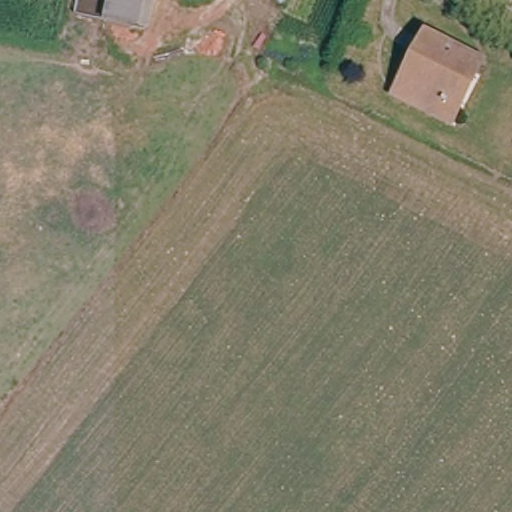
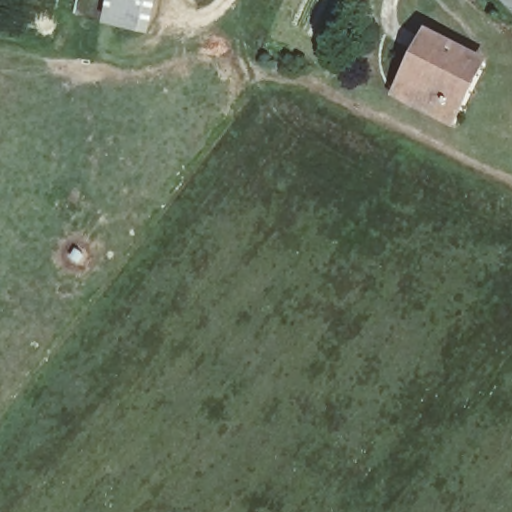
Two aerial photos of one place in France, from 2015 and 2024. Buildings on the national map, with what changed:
unchanged [(145,33),(144,35),(138,33),(108,27),(111,15),(113,0),(151,0),(149,13),(145,33)]
unchanged [(395,96),(398,88),(423,34),(477,60),(452,112),(448,121),(395,96)]

